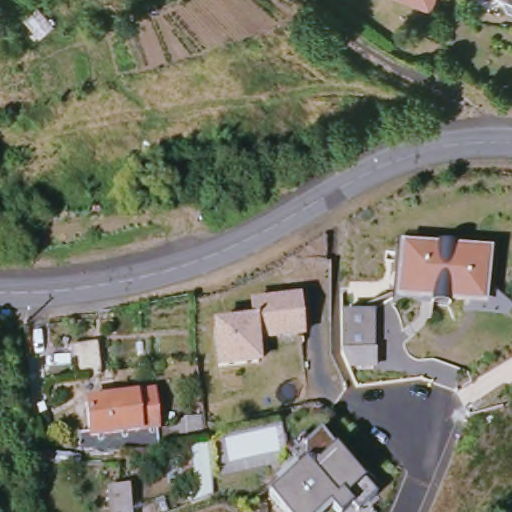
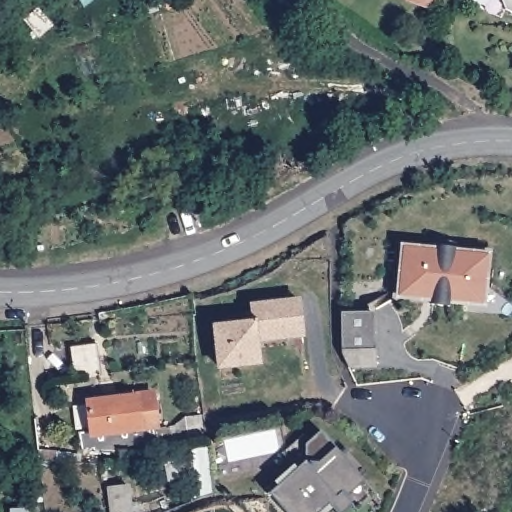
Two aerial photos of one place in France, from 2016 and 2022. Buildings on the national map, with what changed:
unchanged [(432,0),(430,5),(417,0),(432,0)]
unchanged [(505,0),(512,0),(512,9),(507,6),(505,0)]
unchanged [(404,249),(437,252),(437,248),(455,249),(455,253),(487,256),(485,279),(480,286),(485,289),(490,293),(490,304),(472,303),(470,303),(450,301),(450,307),(432,305),(433,294),(422,293),(422,299),(400,297),(404,249)]
unchanged [(259,363),(219,368),(215,328),(253,324),(251,306),(286,302),(299,301),(302,336),(290,337),(256,341),(259,363)]
unchanged [(375,314),(377,370),(350,370),(342,355),(342,314),(375,314)]
unchanged [(70,349),(95,346),(100,377),(73,382),(70,349)]
unchanged [(82,431),(95,428),(92,400),(159,393),(162,423),(97,431),(99,448),(85,450),(82,431)]
unchanged [(346,455),(340,460),(354,475),(360,483),(365,478),(382,497),(365,512),(361,512),(357,508),(353,512),(339,512),(335,507),(328,512),(290,512),(279,499),(275,495),(300,473),(292,464),(292,452),(309,437),(315,443),(326,433),(346,455)]
unchanged [(130,512),(109,512),(107,483),(130,483),(130,512)]

